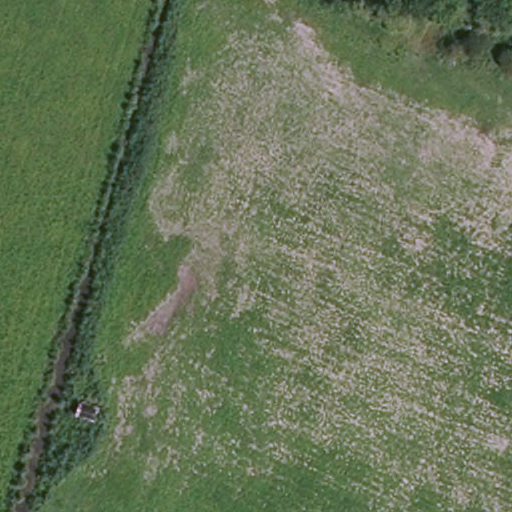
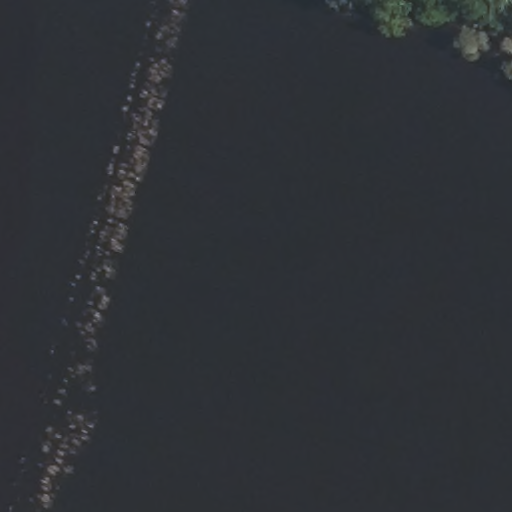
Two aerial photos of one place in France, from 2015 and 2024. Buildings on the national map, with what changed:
unchanged [(94,423),(73,417),(77,404),(99,411),(94,423)]

